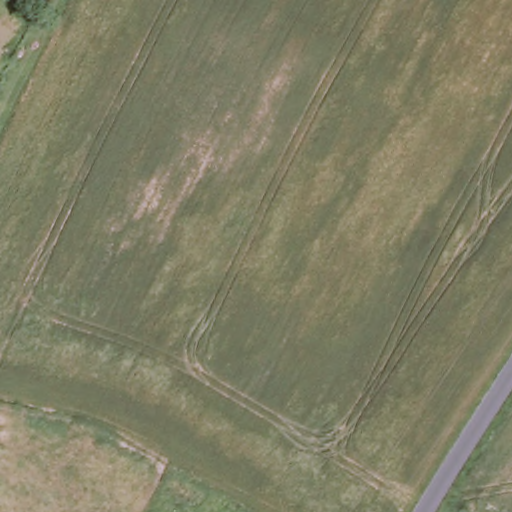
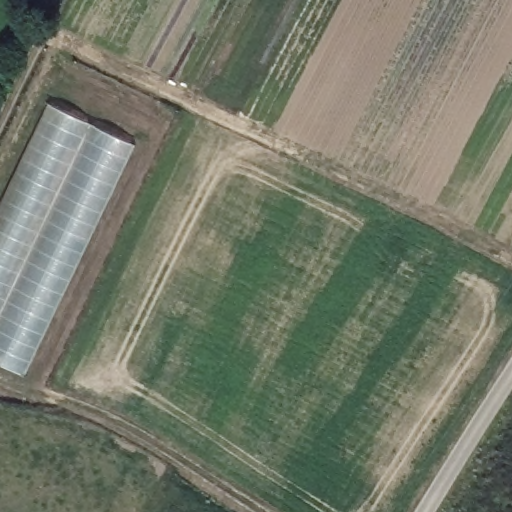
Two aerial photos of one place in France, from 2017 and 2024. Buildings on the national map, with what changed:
new [(0,363),(0,204),(49,101),(135,144),(24,374),(0,363)]

